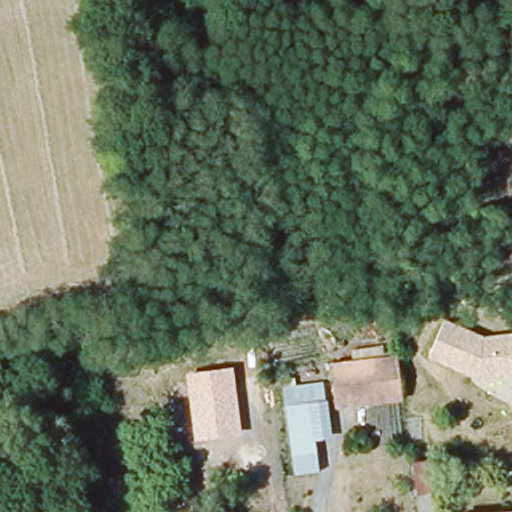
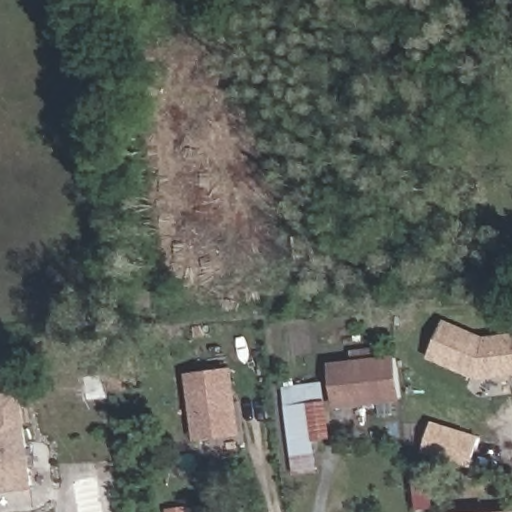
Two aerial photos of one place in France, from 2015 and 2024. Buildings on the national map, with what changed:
unchanged [(428,359),(445,321),(483,337),(512,335),(512,377),(478,381),(428,359)]
unchanged [(397,358),(402,399),(360,403),(356,363),(397,358)]
unchanged [(360,403),(336,407),(330,367),(356,363),(360,403)]
unchanged [(194,441),(186,373),(233,367),(242,435),(194,441)]
unchanged [(309,403),(286,406),(284,388),(326,384),(333,438),(315,441),(309,403)]
new [(32,489),(0,493),(0,393),(21,391),(32,489)]
unchanged [(286,406),(309,403),(315,441),(320,474),(296,477),(286,406)]
new [(422,451),(432,421),(481,437),(472,466),(422,451)]

